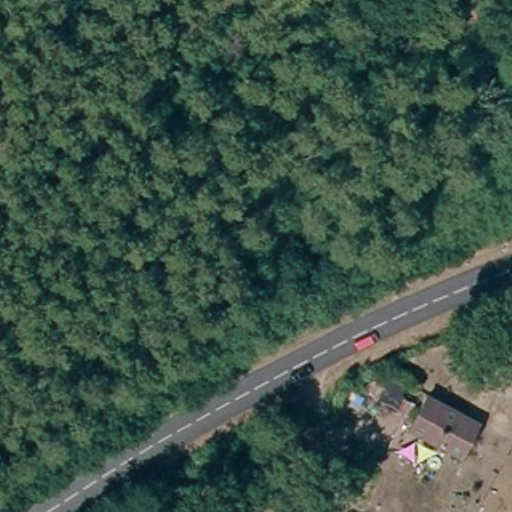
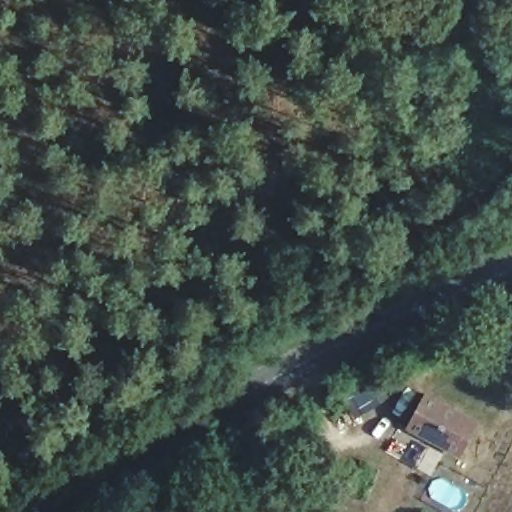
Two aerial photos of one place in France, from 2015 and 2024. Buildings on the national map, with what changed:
unchanged [(475,426),(462,453),(414,428),(430,393),(482,418),(475,426)]

